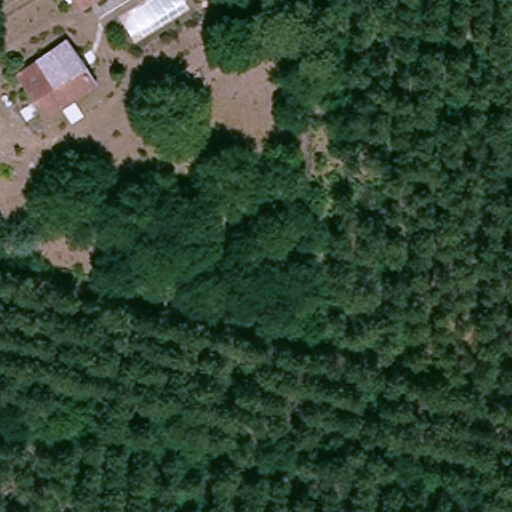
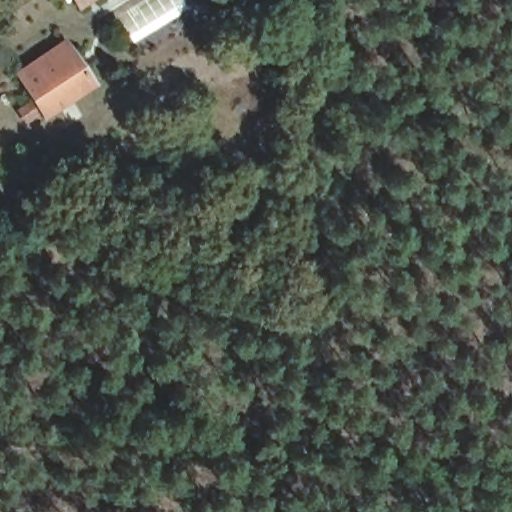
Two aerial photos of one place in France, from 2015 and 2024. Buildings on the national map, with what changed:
unchanged [(75,5),(72,0),(82,0),(75,5)]
unchanged [(61,44),(85,81),(40,111),(16,73),(61,44)]

